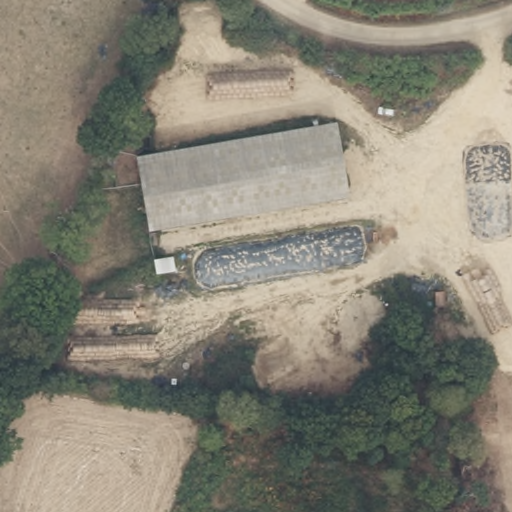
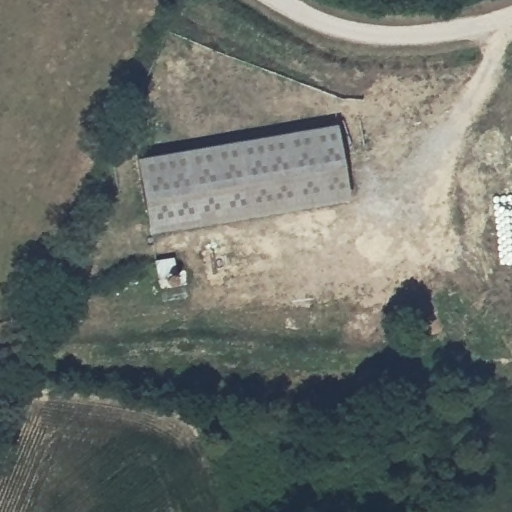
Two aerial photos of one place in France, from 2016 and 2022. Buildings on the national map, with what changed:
unchanged [(348,198),(147,232),(134,156),(337,122),(348,198)]

